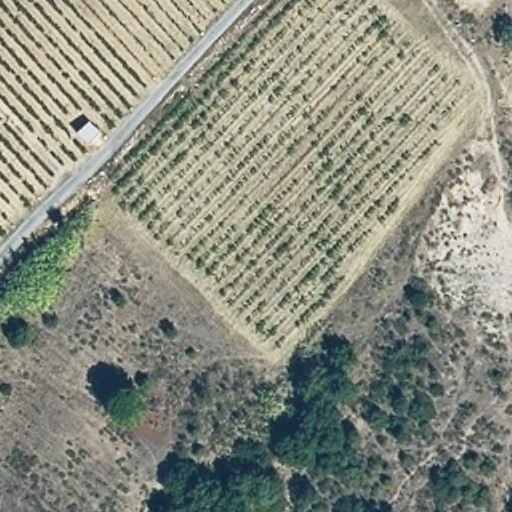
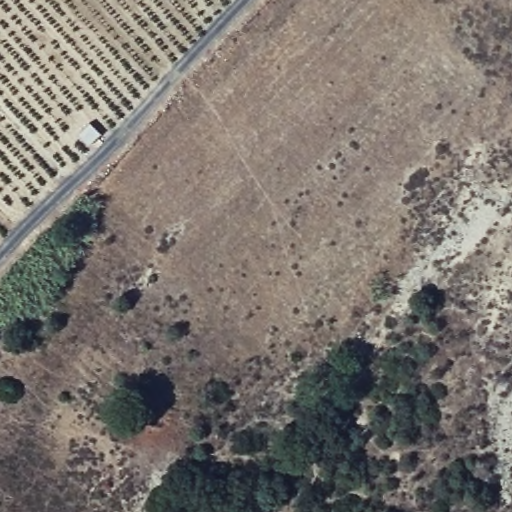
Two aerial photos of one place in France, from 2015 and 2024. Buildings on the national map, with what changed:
unchanged [(102,126),(91,144),(70,133),(88,115),(102,126)]

